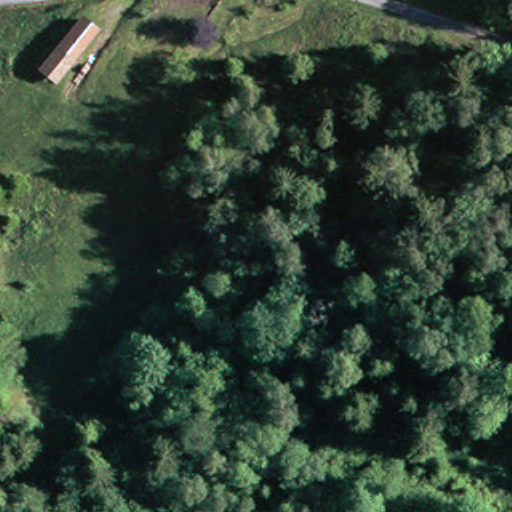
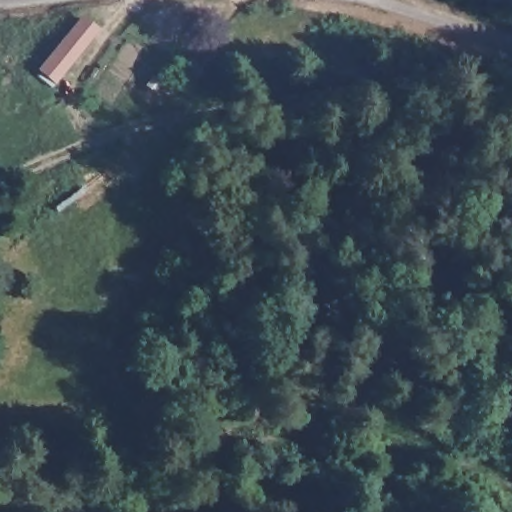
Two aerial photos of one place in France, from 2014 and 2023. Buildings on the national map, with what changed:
unchanged [(142,0),(148,0),(155,12),(127,27),(120,12),(142,0)]
unchanged [(103,33),(75,62),(52,44),(79,16),(103,33)]

